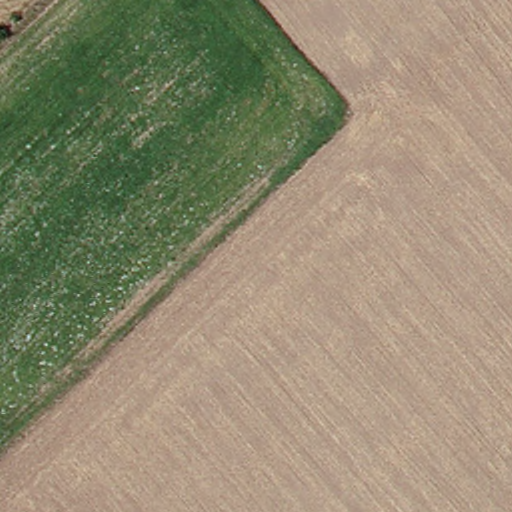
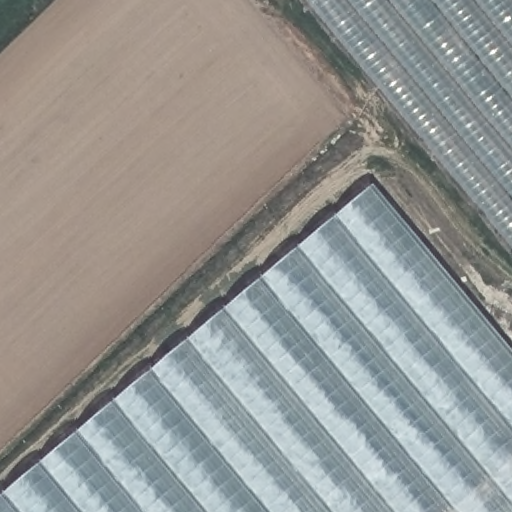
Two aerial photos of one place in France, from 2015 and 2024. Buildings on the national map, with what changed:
new [(512,0),(512,266),(306,0),(512,0)]
new [(512,348),(512,512),(0,512),(0,498),(375,184),(512,348)]
demolished [(512,421),(487,388),(512,363),(512,421)]
demolished [(512,477),(512,512),(359,512),(461,412),(512,477)]

